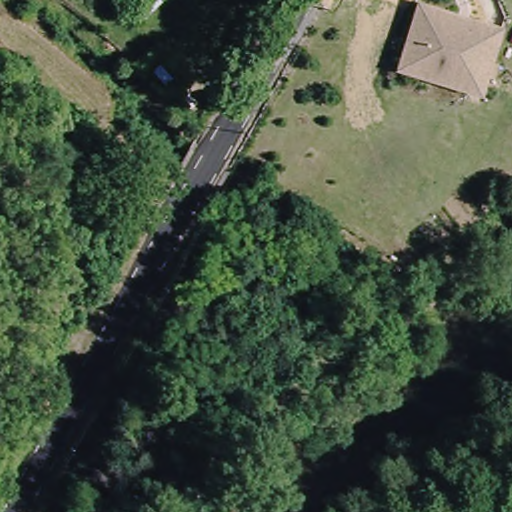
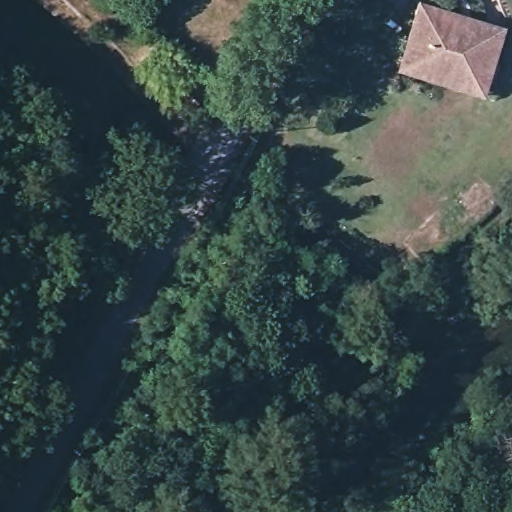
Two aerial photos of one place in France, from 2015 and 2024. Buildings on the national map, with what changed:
unchanged [(467,25),(469,21),(486,27),(469,78),(403,54),(421,4),(461,18),(459,23),(467,25)]
unchanged [(502,33),(480,99),(397,72),(403,54),(469,78),(486,27),(502,33)]

